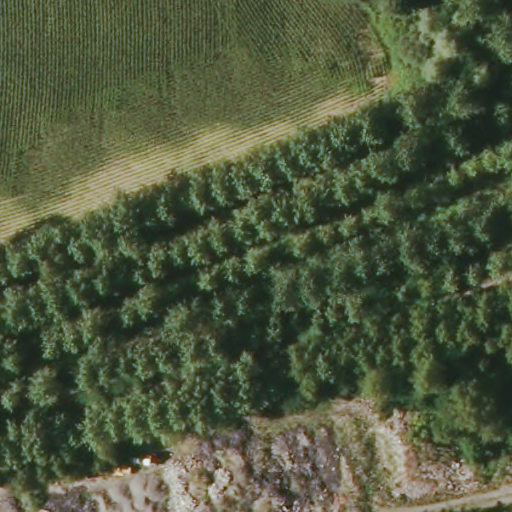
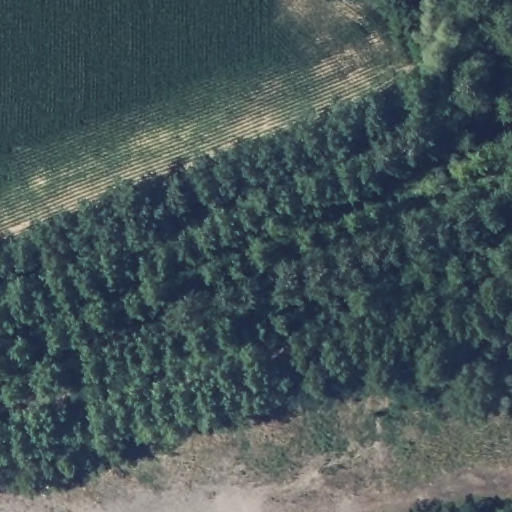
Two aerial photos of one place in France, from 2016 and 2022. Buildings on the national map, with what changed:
unchanged [(350,382),(373,376),(376,387),(379,395),(360,404),(355,393),(350,382)]

